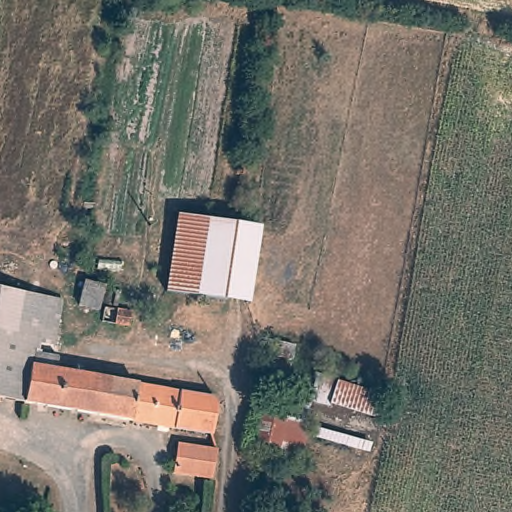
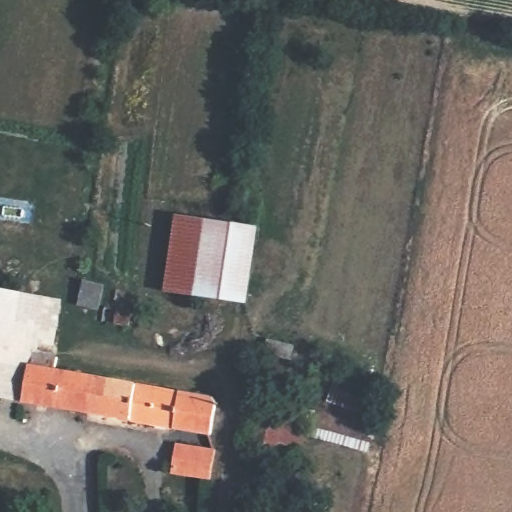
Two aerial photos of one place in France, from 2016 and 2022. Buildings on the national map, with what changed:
unchanged [(257,234),(246,308),(165,297),(177,221),(257,234)]
unchanged [(104,291),(98,315),(78,310),(84,286),(104,291)]
unchanged [(0,404),(0,295),(61,305),(52,358),(35,355),(34,360),(57,363),(54,376),(96,383),(88,419),(0,404)]
unchanged [(131,312),(129,327),(114,324),(116,309),(131,312)]
unchanged [(294,347),(290,360),(265,355),(268,340),(294,347)]
unchanged [(330,411),(310,406),(315,377),(337,383),(336,388),(382,401),(376,423),(330,411)]
unchanged [(213,403),(216,408),(211,440),(88,419),(96,383),(213,403)]
unchanged [(288,402),(310,406),(299,462),(252,451),(260,420),(265,421),(269,406),(287,409),(288,402)]
unchanged [(216,460),(210,490),(171,484),(176,455),(216,460)]

